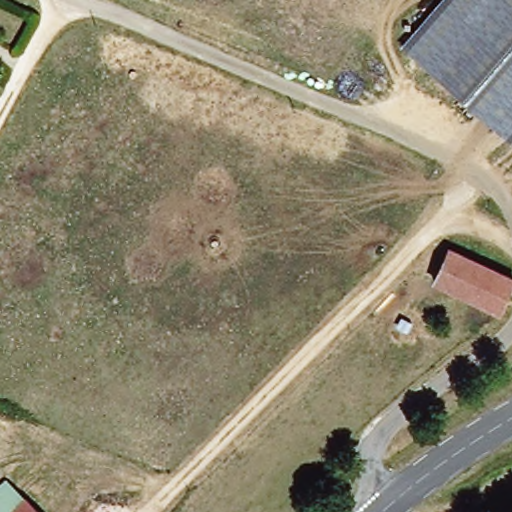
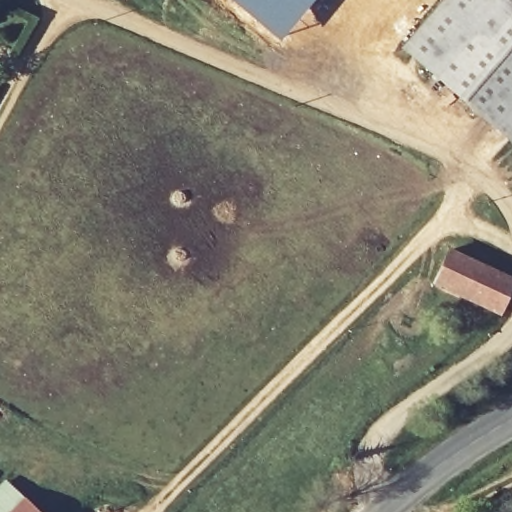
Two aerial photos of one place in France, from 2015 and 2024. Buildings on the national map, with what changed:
new [(231,0),(314,0),(280,41),(231,0)]
unchanged [(512,0),(512,141),(508,146),(399,48),(441,0),(512,0)]
unchanged [(437,283),(450,258),(511,290),(497,317),(437,283)]
unchanged [(27,501),(16,512),(0,512),(0,495),(10,485),(27,501)]
unchanged [(27,501),(39,512),(16,512),(27,501)]

